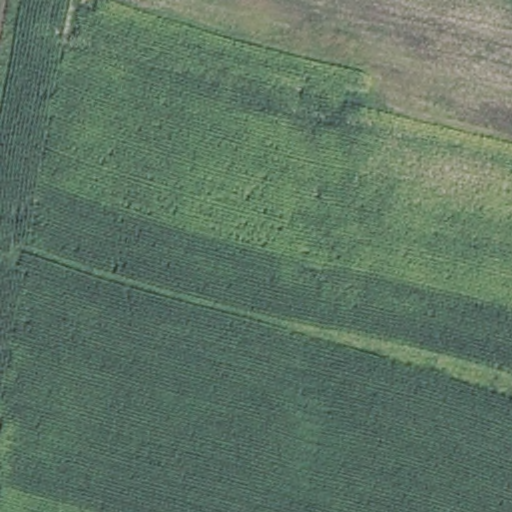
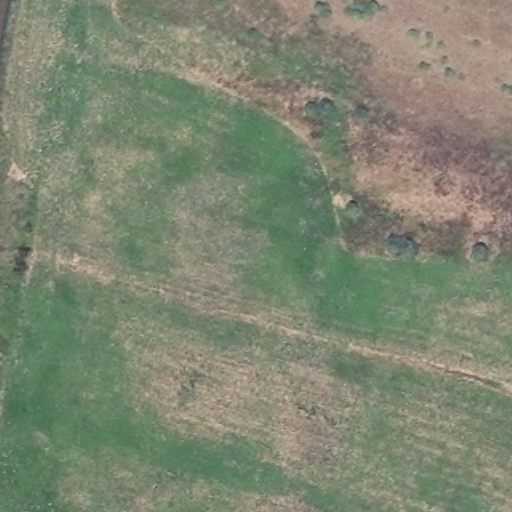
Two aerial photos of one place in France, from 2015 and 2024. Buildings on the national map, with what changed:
[]

